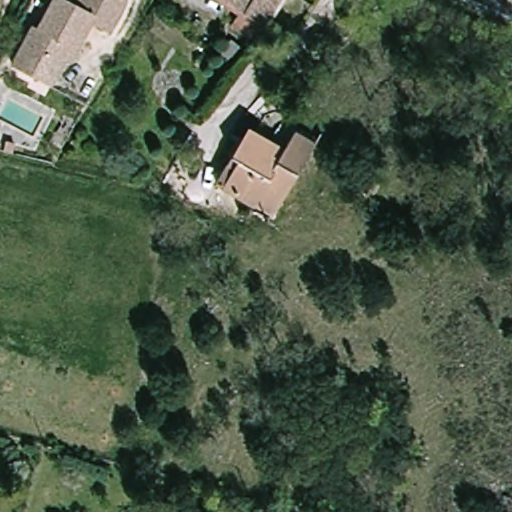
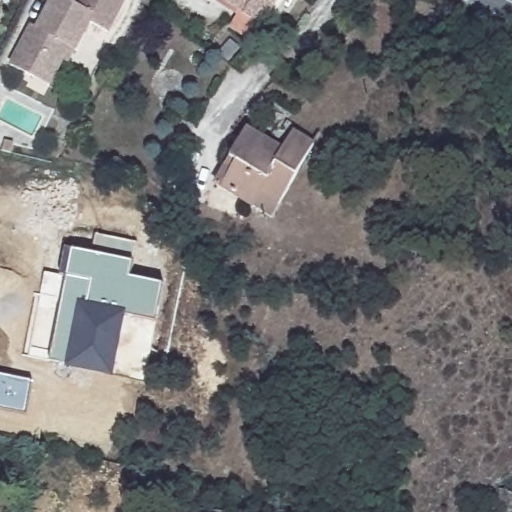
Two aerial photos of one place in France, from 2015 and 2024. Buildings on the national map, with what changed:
unchanged [(2,0),(0,5),(0,0),(2,0)]
unchanged [(50,87),(36,80),(13,67),(35,26),(42,30),(57,0),(67,0),(77,6),(81,0),(125,0),(128,1),(110,34),(92,23),(77,51),(70,63),(64,60),(50,87)]
unchanged [(240,11),(223,0),(284,0),(266,28),(257,40),(232,24),(240,11)]
unchanged [(226,64),(215,55),(228,40),(238,49),(226,64)]
unchanged [(256,204),(255,206),(218,185),(250,130),(287,151),(297,133),(317,144),(275,215),(256,204)]
new [(132,262),(130,276),(162,283),(154,321),(125,314),(113,377),(65,366),(66,363),(50,360),(62,302),(52,301),(50,310),(38,307),(45,271),(60,274),(65,247),(72,250),(92,253),(96,233),(137,242),(132,262)]
new [(32,381),(25,413),(0,408),(0,375),(32,381)]

